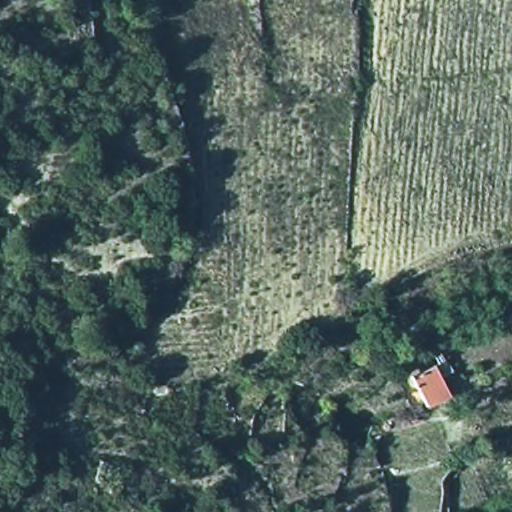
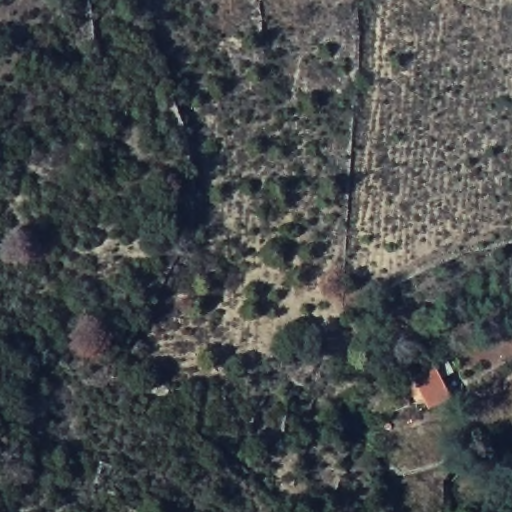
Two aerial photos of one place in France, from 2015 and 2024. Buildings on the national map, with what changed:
unchanged [(411,377),(436,363),(454,397),(430,410),(411,377)]

